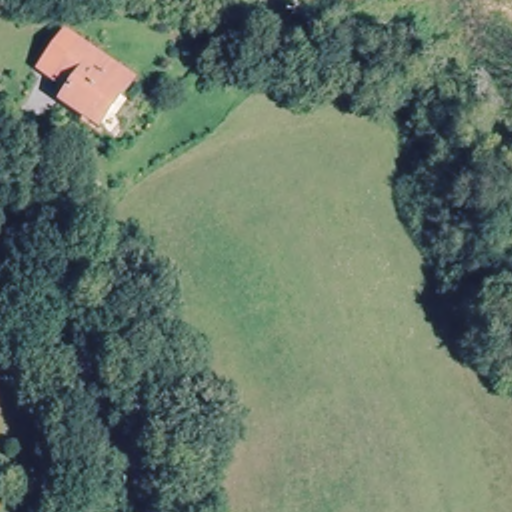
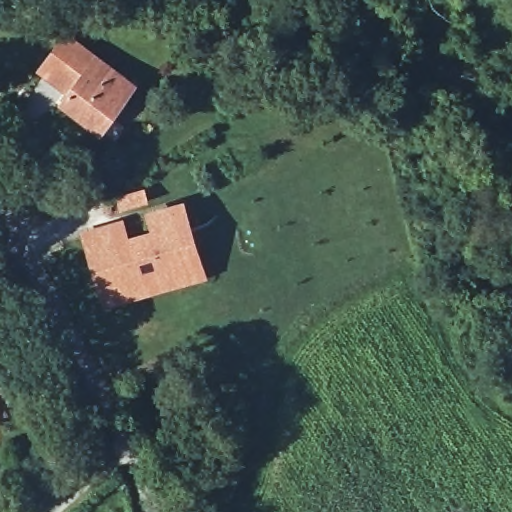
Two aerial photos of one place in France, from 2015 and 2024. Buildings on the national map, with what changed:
unchanged [(99,146),(67,115),(75,105),(60,90),(48,78),(83,42),(95,54),(145,97),(99,146)]
new [(129,235),(150,229),(144,212),(186,199),(209,277),(103,308),(81,232),(123,218),(129,235)]

